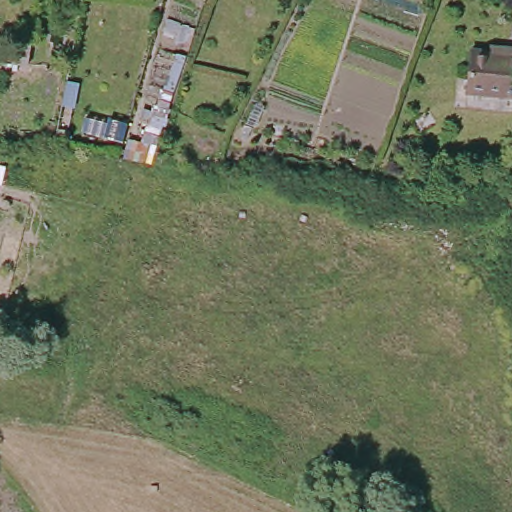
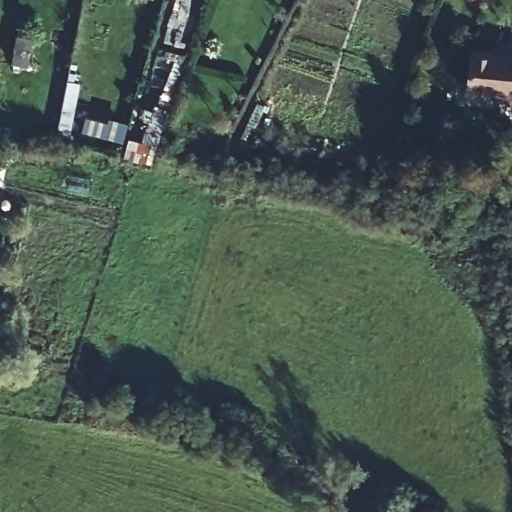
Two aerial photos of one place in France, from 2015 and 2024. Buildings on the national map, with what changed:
unchanged [(467,84),(476,39),(510,46),(511,41),(512,42),(512,94),(467,84)]
unchanged [(99,127),(100,111),(116,112),(115,128),(99,127)]

